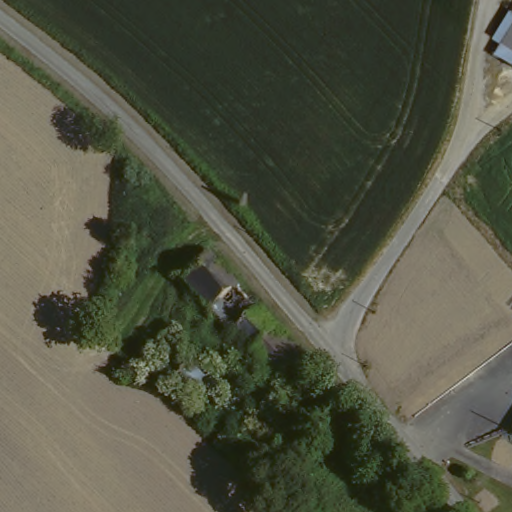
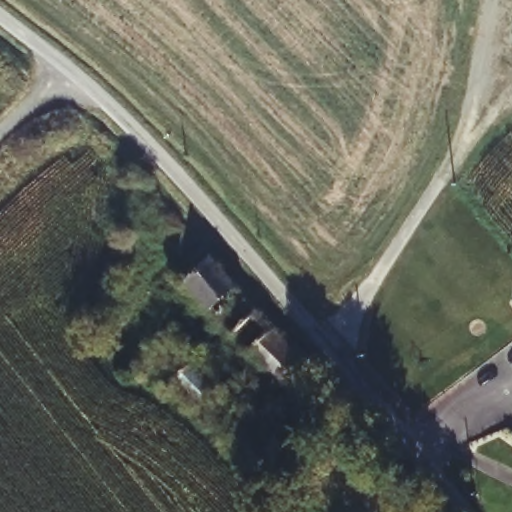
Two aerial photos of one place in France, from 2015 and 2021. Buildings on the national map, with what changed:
demolished [(493,52),(501,40),(512,22),(512,63),(493,52)]
unchanged [(230,332),(183,272),(205,251),(307,362),(284,386),(230,332)]
unchanged [(186,356),(214,387),(194,405),(183,393),(186,390),(170,371),(186,356)]
unchanged [(231,445),(246,430),(279,467),(262,481),(231,445)]

